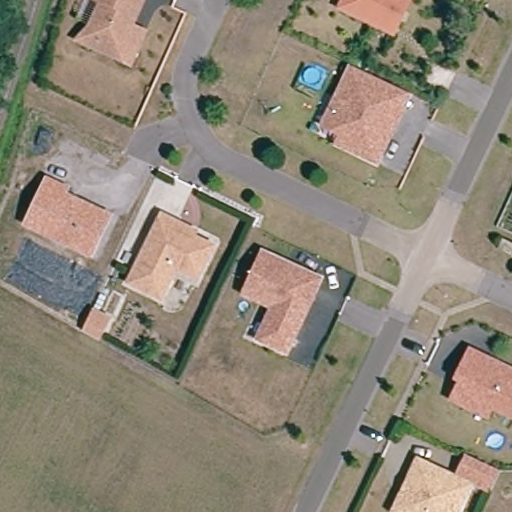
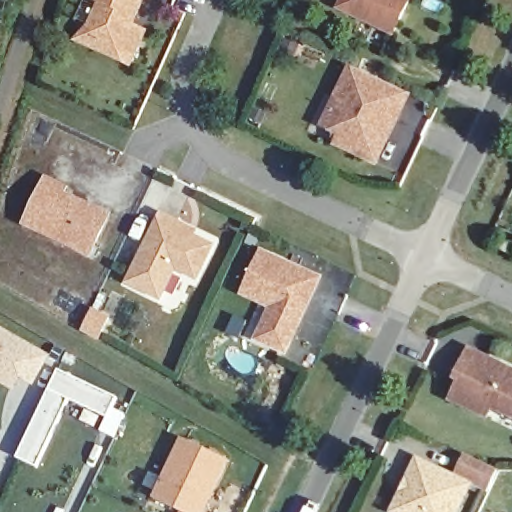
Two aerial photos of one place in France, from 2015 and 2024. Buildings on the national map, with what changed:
unchanged [(80,17),(88,0),(148,0),(140,17),(136,24),(150,30),(135,64),(120,56),(80,37),(88,20),(80,17)]
unchanged [(341,6),(343,0),(410,0),(395,31),(341,6)]
unchanged [(330,116),(352,69),(387,85),(409,96),(403,110),(377,165),(338,145),(341,138),(323,130),(330,116)]
unchanged [(72,190),(69,196),(116,218),(98,256),(33,226),(54,182),(72,190)]
unchanged [(190,273),(182,268),(166,300),(134,283),(167,216),(182,224),(201,233),(199,237),(219,247),(209,267),(203,279),(190,273)]
unchanged [(512,232),(512,244),(503,239),(507,230),(512,232)]
unchanged [(269,329),(279,309),(250,295),(269,255),(325,282),(291,355),(274,346),(264,341),(269,329)]
new [(0,326),(53,357),(35,387),(21,381),(15,392),(0,384),(0,326)]
unchanged [(470,410),(455,402),(465,383),(458,380),(461,375),(472,350),(512,370),(512,417),(497,410),(492,420),(470,410)]
new [(18,458),(60,371),(119,398),(114,410),(126,416),(116,438),(101,433),(108,418),(69,401),(38,467),(18,458)]
new [(180,510),(153,499),(181,437),(232,461),(207,512),(179,512),(180,510)]
unchanged [(398,510),(423,457),(462,475),(473,453),(505,469),(495,491),(477,483),(463,512),(397,512),(398,510)]

